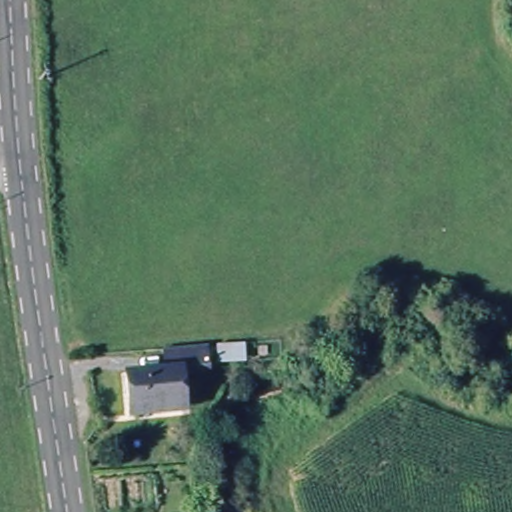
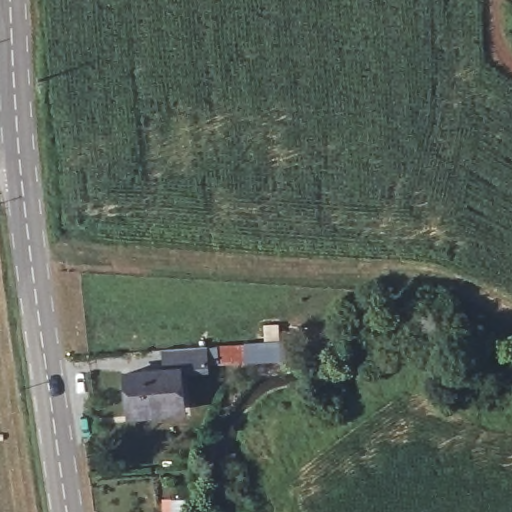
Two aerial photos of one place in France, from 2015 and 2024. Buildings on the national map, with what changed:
unchanged [(160,371),(160,351),(160,346),(202,347),(202,349),(202,370),(173,371),(173,416),(120,419),(120,373),(160,371)]

